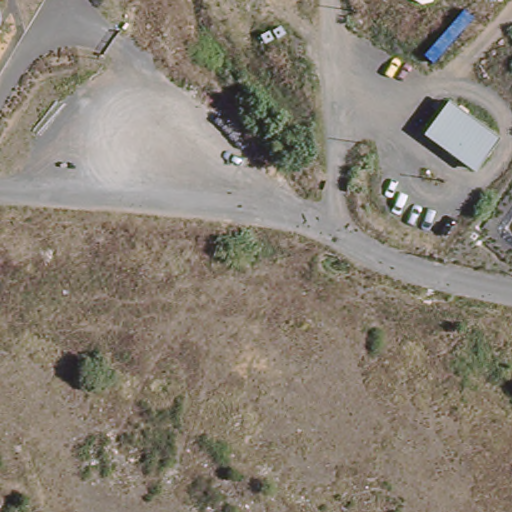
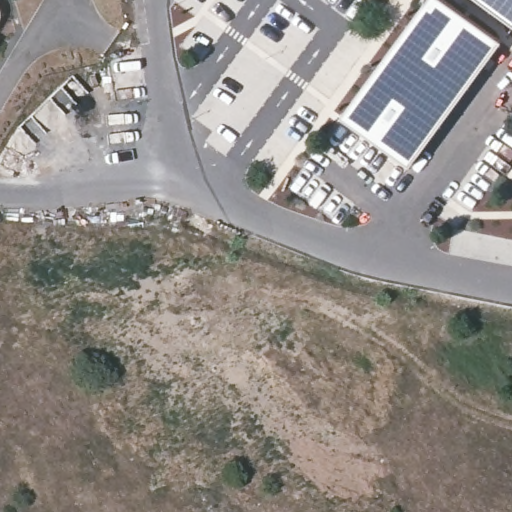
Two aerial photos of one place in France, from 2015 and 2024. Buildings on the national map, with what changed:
unchanged [(0,15),(0,0),(6,4),(0,15)]
new [(343,118),(428,0),(445,0),(501,43),(411,166),(343,118)]
new [(481,0),(512,0),(512,23),(481,0)]

